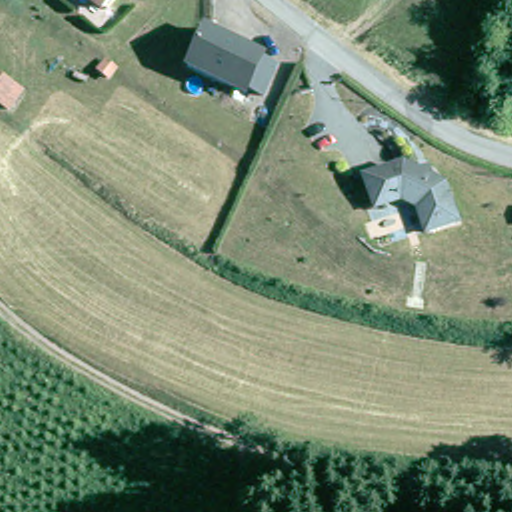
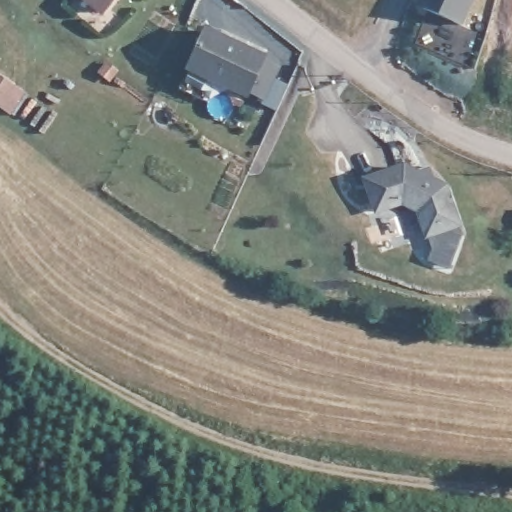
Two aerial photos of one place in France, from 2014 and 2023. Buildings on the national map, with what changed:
unchanged [(80,0),(99,0),(91,9),(80,0)]
new [(415,4),(416,0),(473,0),(463,24),(415,4)]
unchanged [(267,50),(263,58),(277,63),(264,91),(250,85),(246,95),(190,66),(207,30),(267,50)]
unchanged [(2,117),(0,116),(0,88),(16,100),(2,117)]
unchanged [(442,184),(454,225),(422,235),(414,209),(397,202),(371,210),(360,177),(400,164),(442,184)]

